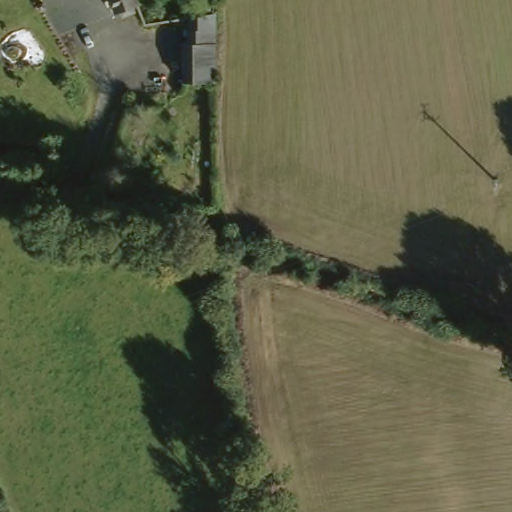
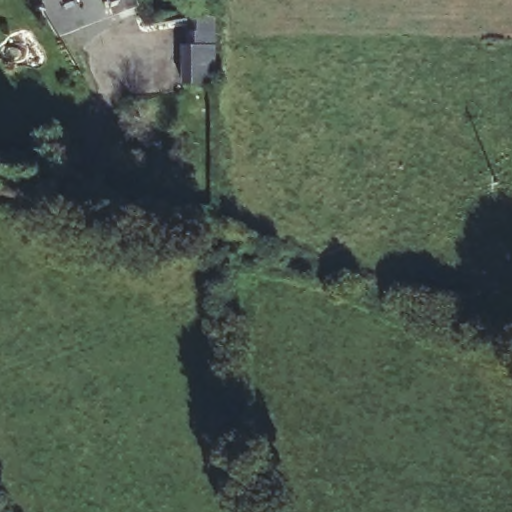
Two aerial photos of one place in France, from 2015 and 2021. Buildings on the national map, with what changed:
unchanged [(132,25),(110,30),(102,0),(126,0),(132,25)]
unchanged [(182,82),(182,42),(187,42),(187,29),(216,28),(218,78),(182,82)]

